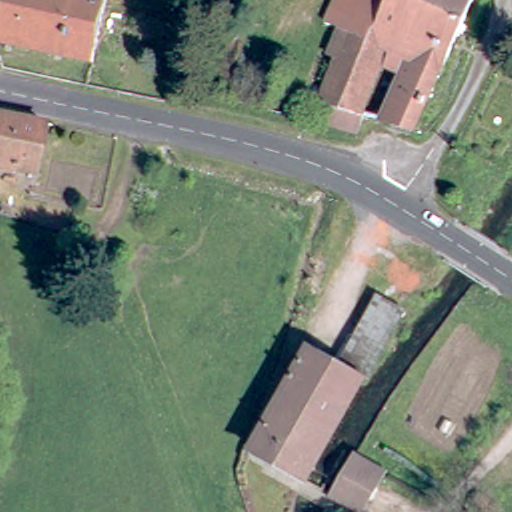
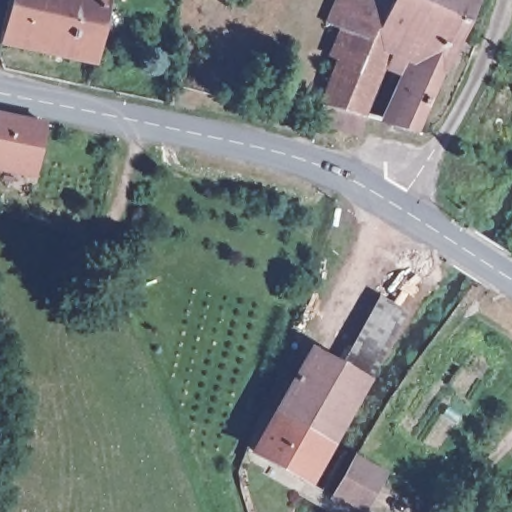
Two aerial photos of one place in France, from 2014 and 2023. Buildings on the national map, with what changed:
unchanged [(93,67),(0,45),(10,0),(107,0),(93,67)]
unchanged [(361,129),(327,120),(325,97),(330,82),(340,44),(352,0),(475,0),(420,124),(390,115),(405,66),(381,59),(361,129)]
unchanged [(0,165),(0,114),(43,122),(33,171),(0,165)]
unchanged [(375,295),(405,311),(365,385),(334,366),(375,295)]
unchanged [(311,354),(334,366),(365,385),(330,447),(290,426),(276,418),(311,354)]
unchanged [(290,426),(330,447),(328,450),(308,485),(280,470),(255,457),(276,418),(290,426)]
unchanged [(381,479),(366,510),(336,495),(356,459),(383,475),(381,479)]

